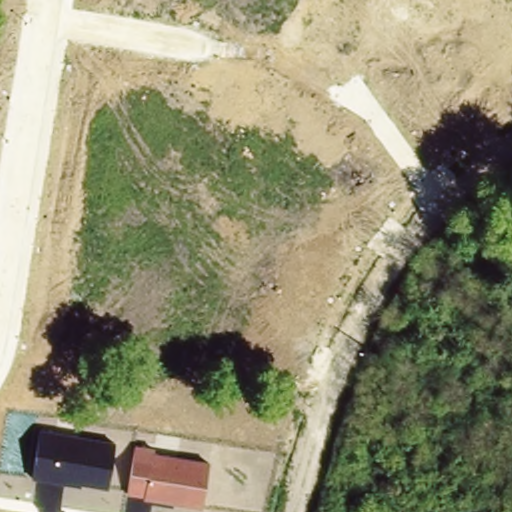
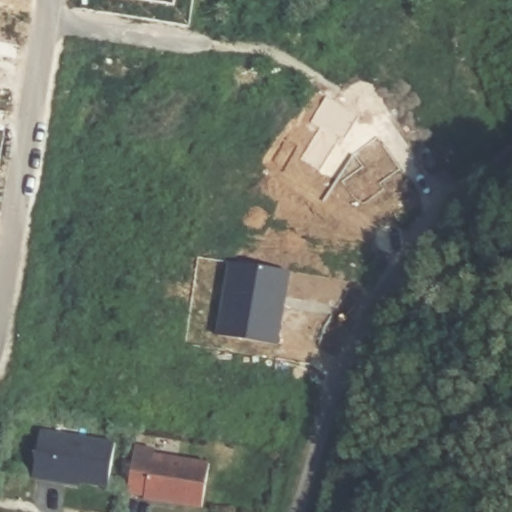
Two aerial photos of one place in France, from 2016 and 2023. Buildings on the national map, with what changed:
new [(230,260),(288,271),(276,345),(217,335),(230,260)]
unchanged [(81,479),(80,483),(32,476),(40,429),(116,442),(108,484),(81,479)]
unchanged [(135,443),(154,445),(153,450),(211,459),(203,505),(126,492),(135,443)]

